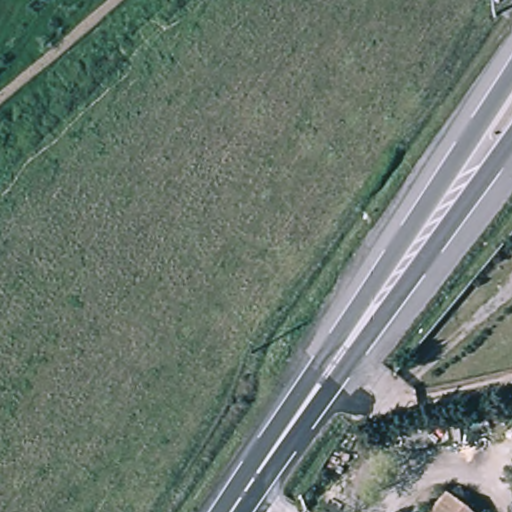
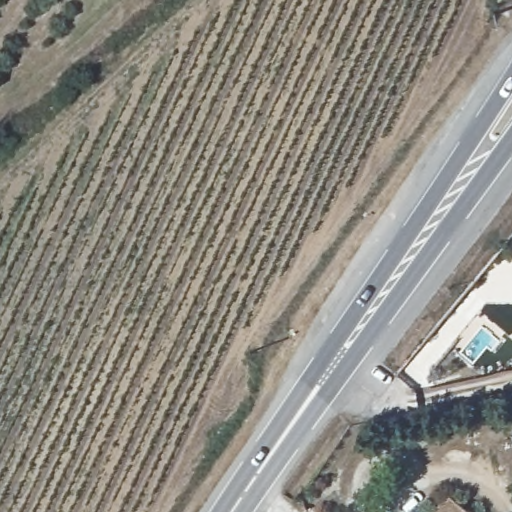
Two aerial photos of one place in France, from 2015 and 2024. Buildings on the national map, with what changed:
unchanged [(465,512),(436,512),(448,498),(465,512)]

